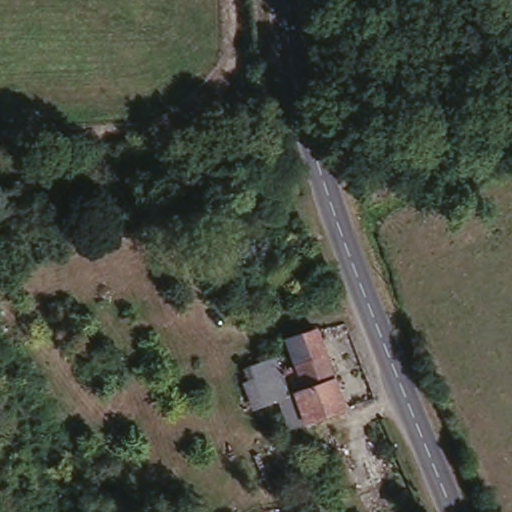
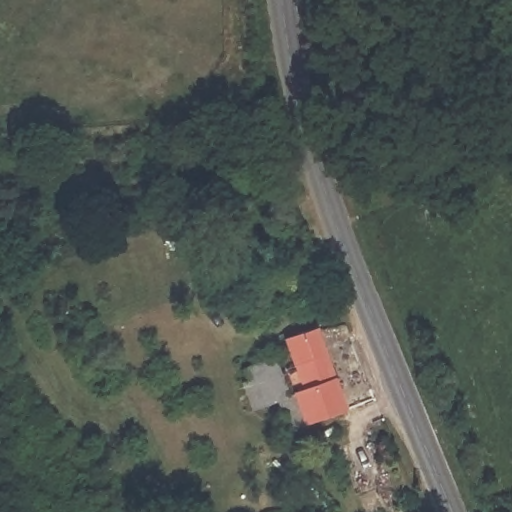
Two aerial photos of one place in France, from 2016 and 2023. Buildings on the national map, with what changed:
unchanged [(317,321),(348,410),(286,427),(277,397),(252,405),(241,364),(283,348),(279,327),(317,321)]

